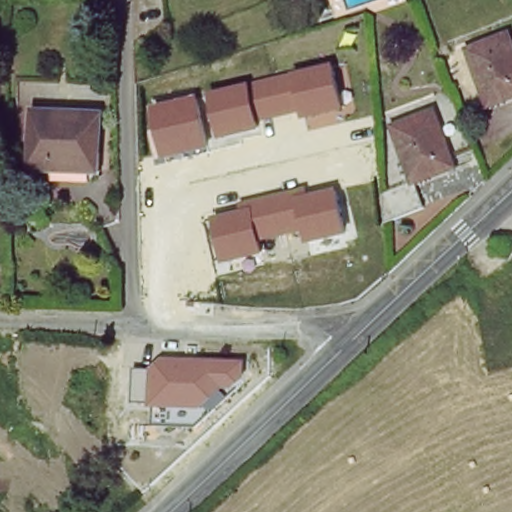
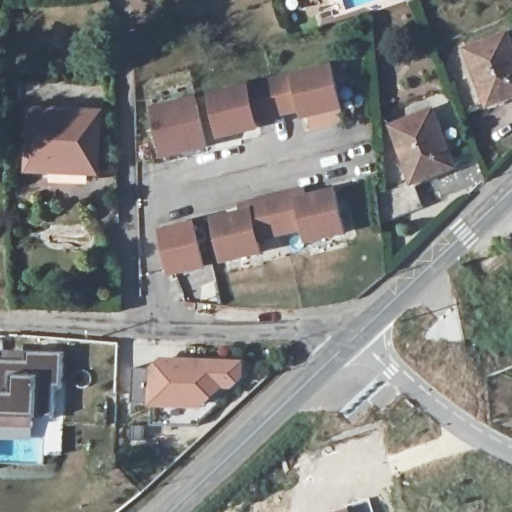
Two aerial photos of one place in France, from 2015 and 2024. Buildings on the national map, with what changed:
unchanged [(504,98),(502,95),(486,102),(466,49),(507,33),(512,48),(512,95),(504,98)]
unchanged [(208,91),(250,82),(291,72),(335,63),(345,111),(301,119),(300,113),(260,123),(261,130),(219,139),(208,91)]
unchanged [(197,96),(210,147),(163,158),(151,107),(197,96)]
unchanged [(430,165),(428,162),(412,169),(390,115),(431,99),(450,148),(454,156),(430,165)]
unchanged [(53,160),(30,159),(33,111),(98,113),(98,131),(105,132),(103,156),(96,156),(95,170),(66,169),(52,168),(53,160)]
unchanged [(423,196),(383,212),(380,183),(412,169),(423,196)]
unchanged [(211,218),(241,211),(240,204),(306,188),(308,193),(336,186),(348,235),(306,244),(304,231),(263,240),(264,255),(222,264),(211,218)]
new [(193,222),(203,264),(171,272),(160,230),(193,222)]
new [(11,350),(63,351),(61,387),(63,387),(62,426),(58,426),(58,454),(42,454),(43,438),(0,437),(0,359),(10,359),(11,350)]
unchanged [(135,368),(151,368),(163,356),(246,360),(245,377),(233,388),(225,389),(231,397),(201,424),(155,423),(155,407),(150,407),(150,403),(131,402),(135,368)]
new [(348,505),(369,498),(372,512),(328,512),(348,505)]

